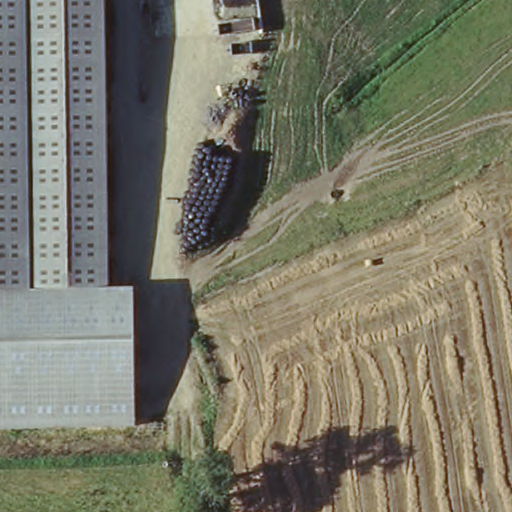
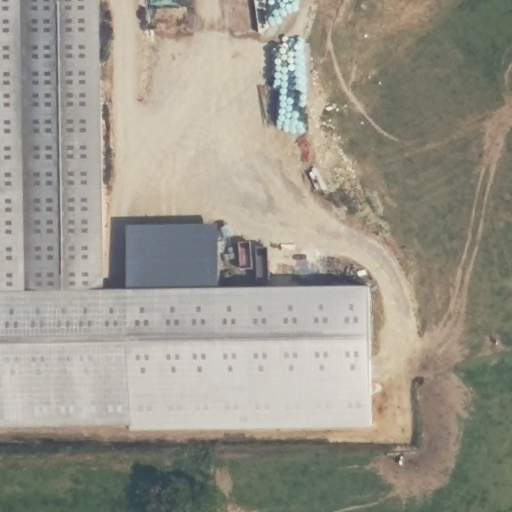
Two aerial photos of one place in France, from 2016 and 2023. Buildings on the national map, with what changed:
unchanged [(0,291),(0,0),(107,0),(111,290),(0,291)]
new [(221,287),(372,285),(373,427),(132,432),(132,425),(137,425),(135,290),(130,290),(127,226),(221,224),(221,287)]
unchanged [(111,290),(135,290),(137,425),(0,427),(0,291),(111,290)]

